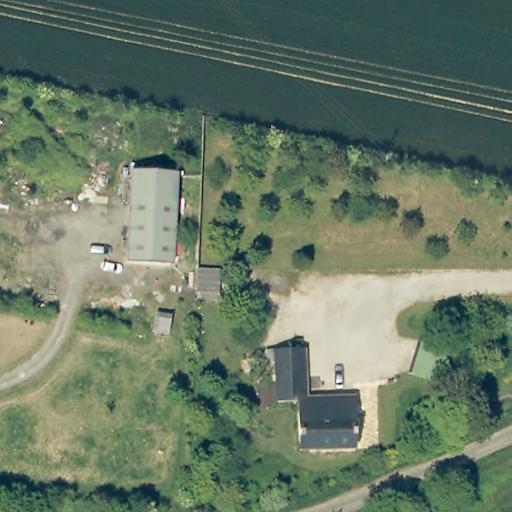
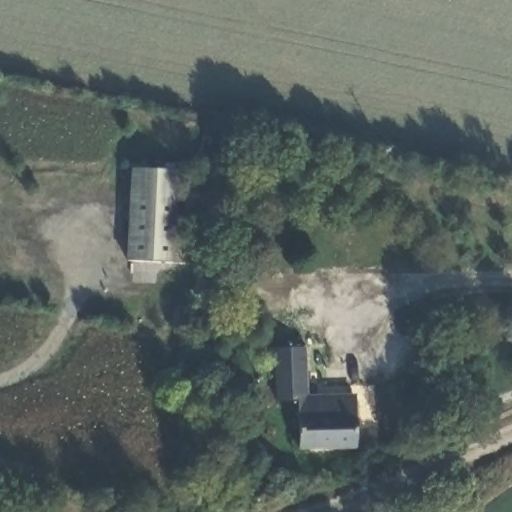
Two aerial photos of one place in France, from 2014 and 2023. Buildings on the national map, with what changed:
unchanged [(125,261),(131,169),(176,172),(170,264),(125,261)]
unchanged [(410,346),(438,355),(433,373),(425,371),(421,386),(400,380),(410,346)]
unchanged [(297,395),(297,398),(277,398),(278,347),(305,347),(304,395),(297,395)]
unchanged [(354,395),(353,448),(296,447),(297,398),(297,395),(304,395),(354,395)]

